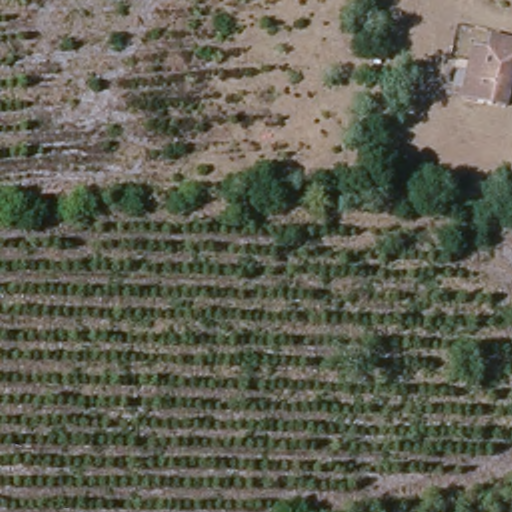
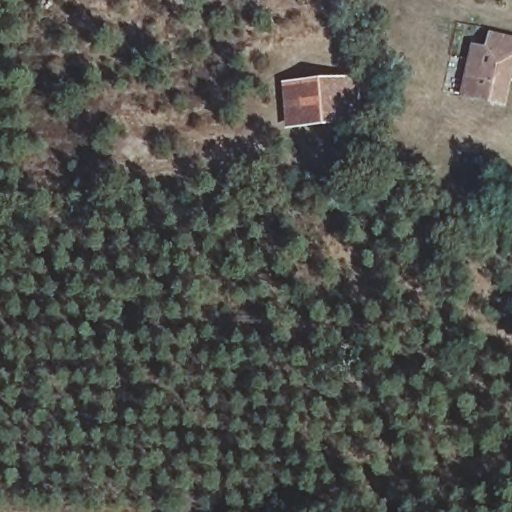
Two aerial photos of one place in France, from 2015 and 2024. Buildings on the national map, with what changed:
unchanged [(509,106),(466,99),(468,92),(476,54),(490,57),(496,34),(512,38),(512,94),(509,106)]
new [(360,76),(366,122),(284,128),(281,81),(360,76)]

